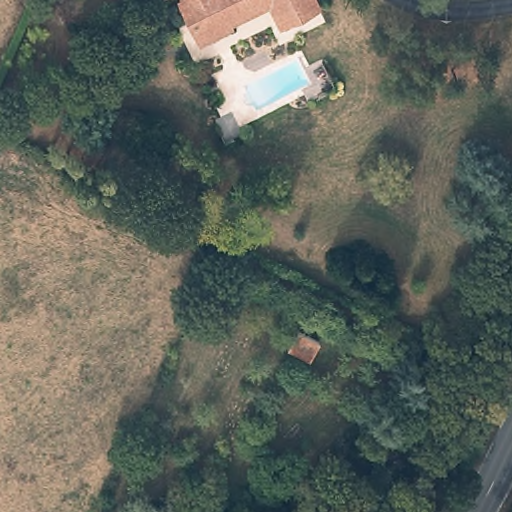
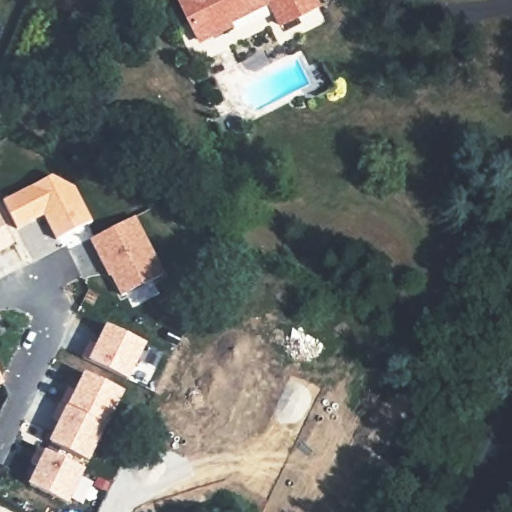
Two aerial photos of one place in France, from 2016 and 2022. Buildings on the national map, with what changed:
unchanged [(235,23),(215,33),(205,15),(192,21),(181,0),(266,0),(232,17),(235,23)]
unchanged [(283,20),(274,2),(278,0),(320,0),(283,20)]
new [(30,185),(50,175),(75,186),(92,221),(56,240),(44,216),(18,228),(3,199),(30,185)]
new [(133,216),(164,273),(120,296),(110,276),(107,276),(89,240),(133,216)]
new [(0,250),(0,219),(13,244),(0,250)]
new [(81,356),(88,341),(95,345),(105,323),(146,344),(126,380),(88,360),(81,356)]
unchanged [(322,338),(312,355),(289,346),(297,328),(322,338)]
new [(59,421),(51,417),(67,386),(74,389),(83,372),(124,392),(89,462),(48,442),(59,421)]
new [(0,385),(0,374),(5,383),(0,385)]
new [(85,470),(67,505),(26,484),(36,465),(29,462),(38,446),(45,450),(85,470)]

